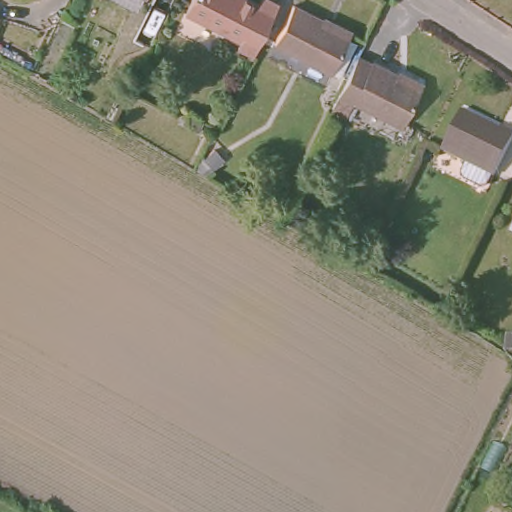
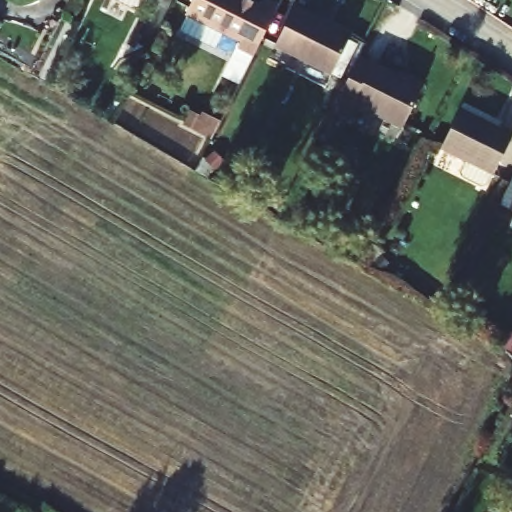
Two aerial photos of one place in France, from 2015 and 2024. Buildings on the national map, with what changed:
unchanged [(239,41),(242,35),(186,8),(190,0),(278,0),(254,49),(239,41)]
unchanged [(327,73),(270,45),(289,7),(346,35),(327,73)]
unchanged [(372,65),(373,63),(422,87),(403,126),(354,102),(347,117),(333,110),(332,110),(342,91),(359,58),(372,65)]
unchanged [(500,125),(512,132),(512,137),(492,175),(440,148),(461,108),(499,128),(500,125)]
unchanged [(512,214),(512,218),(511,217),(512,214)]

